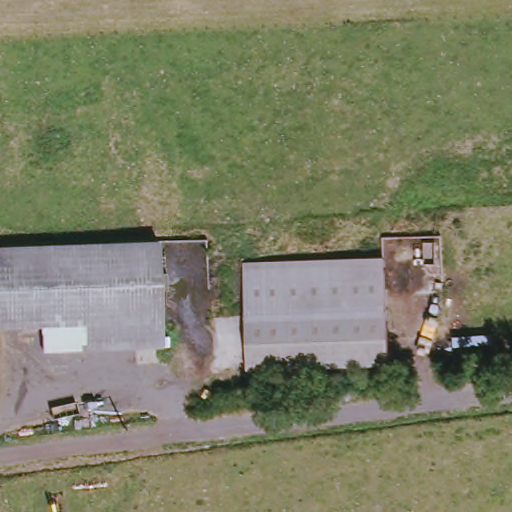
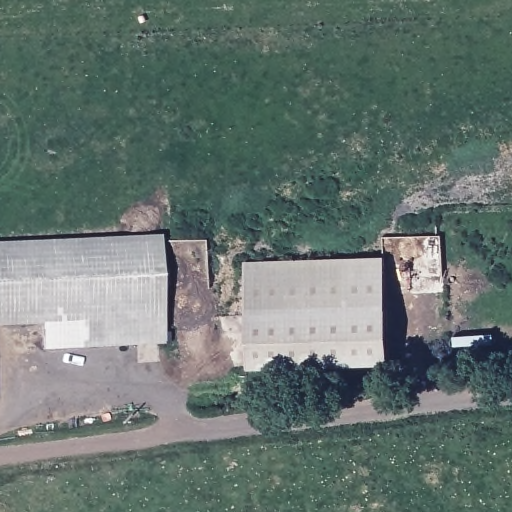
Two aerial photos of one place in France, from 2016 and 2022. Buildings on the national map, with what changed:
unchanged [(41,322),(0,325),(0,244),(159,236),(162,346),(85,349),(43,351),(41,322)]
unchanged [(388,358),(247,365),(245,308),(240,260),(383,256),(382,305),(388,358)]

